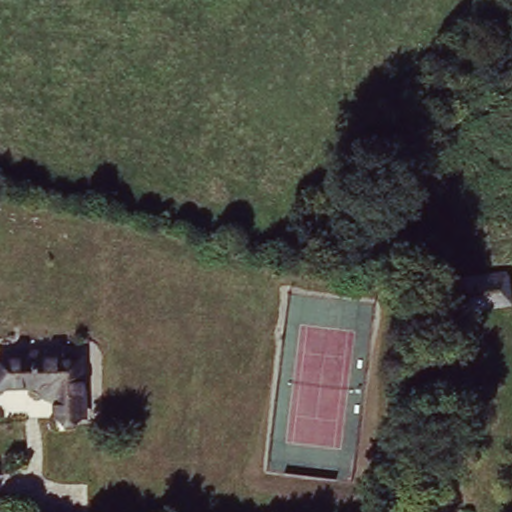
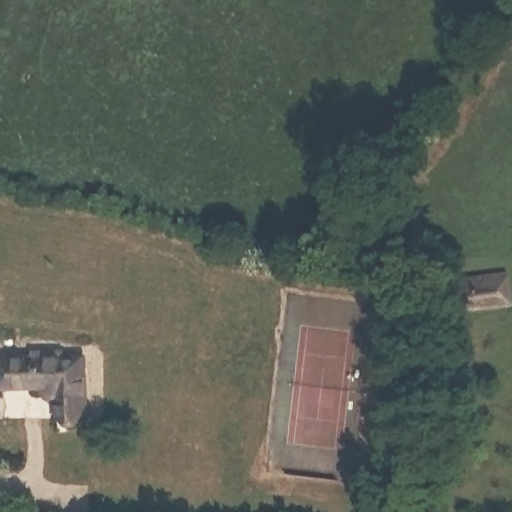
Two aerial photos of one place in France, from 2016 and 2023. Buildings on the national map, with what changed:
unchanged [(497,282),(503,304),(459,313),(455,289),(497,282)]
unchanged [(85,353),(84,414),(52,415),(52,404),(35,383),(0,383),(0,352),(85,353)]

